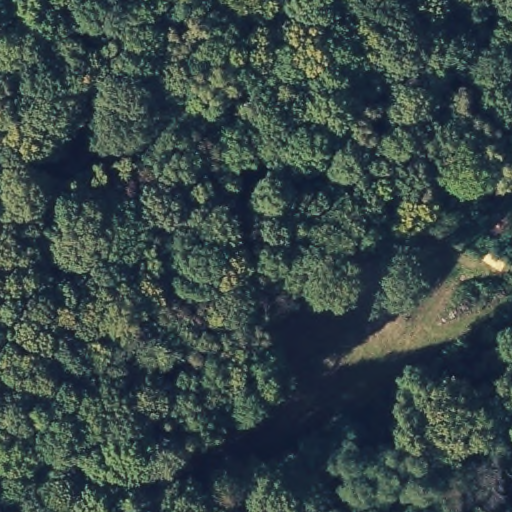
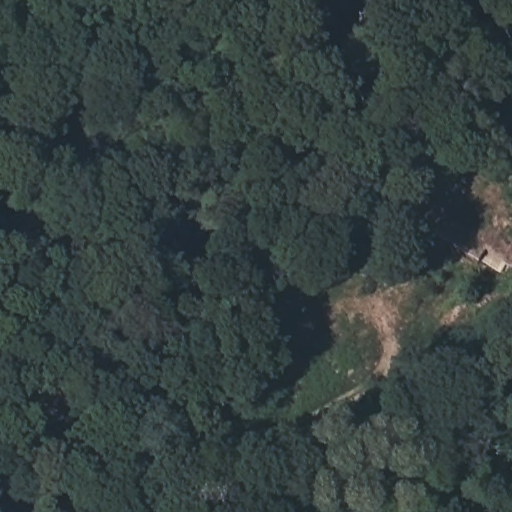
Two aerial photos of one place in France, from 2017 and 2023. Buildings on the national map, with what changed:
unchanged [(402,121),(417,231),(377,241),(362,126),(402,121)]

